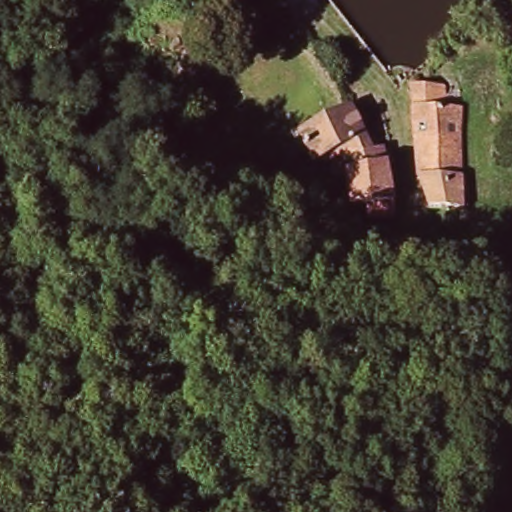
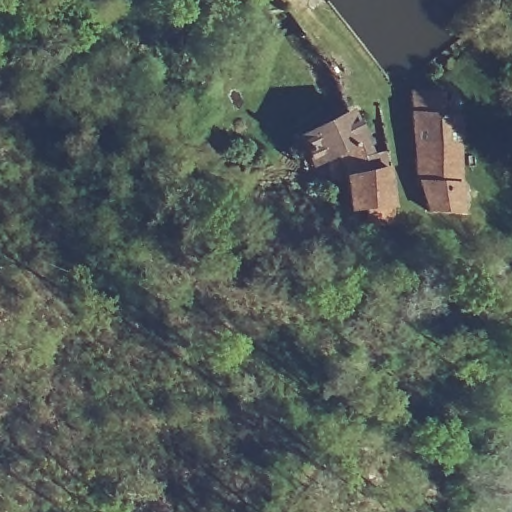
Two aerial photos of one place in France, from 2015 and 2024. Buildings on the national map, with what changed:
unchanged [(483,208),(446,214),(441,193),(432,193),(418,99),(439,99),(442,114),(466,115),(483,208)]
unchanged [(332,156),(318,159),(305,133),(358,106),(368,128),(383,123),(395,148),(385,153),(407,198),(376,216),(364,190),(347,159),(337,163),(332,156)]

